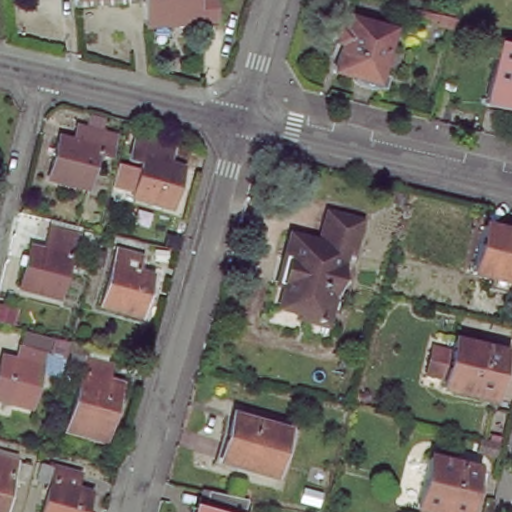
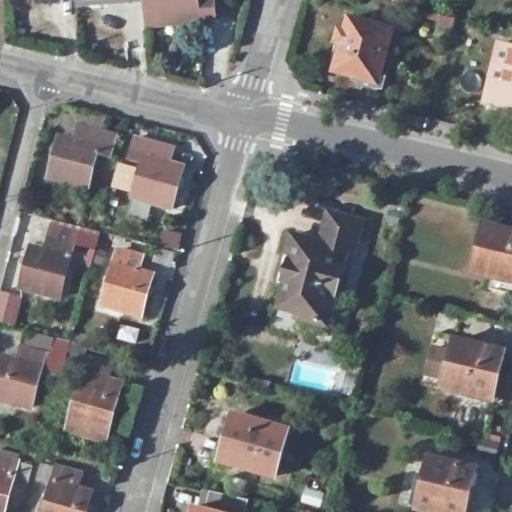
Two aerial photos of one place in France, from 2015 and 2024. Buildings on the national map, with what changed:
unchanged [(71,0),(139,0),(140,1),(71,6),(71,0)]
unchanged [(211,0),(213,21),(141,26),(140,1),(139,0),(211,0)]
unchanged [(380,86),(369,86),(358,83),(348,79),(350,71),(330,66),(333,54),(340,26),(345,13),(388,25),(376,72),(382,74),(380,86)]
unchanged [(512,109),(488,104),(501,44),(512,47),(512,109)]
unchanged [(50,178),(60,138),(75,142),(79,127),(117,136),(112,157),(98,154),(90,188),(50,178)]
unchanged [(130,203),(139,169),(125,165),(130,145),(168,155),(165,169),(178,172),(167,212),(130,203)]
unchanged [(324,297),(319,316),(290,308),(291,304),(276,300),(287,256),(280,254),(288,230),(317,238),(328,204),(361,212),(351,248),(345,246),(330,300),(324,297)]
unchanged [(512,280),(473,271),(485,224),(512,231),(512,280)]
unchanged [(48,250),(55,225),(80,231),(62,298),(23,288),(34,247),(48,250)]
unchanged [(100,310),(115,255),(140,261),(135,275),(149,279),(137,321),(100,310)]
unchanged [(38,370),(27,408),(0,400),(0,357),(15,360),(23,330),(51,337),(47,354),(57,357),(52,373),(38,370)]
unchanged [(505,350),(493,398),(444,386),(455,339),(505,350)]
unchanged [(65,429),(80,374),(64,370),(69,352),(109,364),(104,379),(120,383),(104,441),(65,429)]
unchanged [(286,433),(276,477),(222,464),(235,418),(286,433)]
unchanged [(33,461),(28,480),(15,477),(5,512),(0,512),(0,452),(33,461)]
unchanged [(476,468),(466,512),(435,512),(416,508),(428,457),(476,468)]
unchanged [(55,468),(80,474),(75,489),(88,493),(83,512),(41,512),(55,468)]
unchanged [(204,502),(242,510),(242,512),(201,512),(204,502)]

